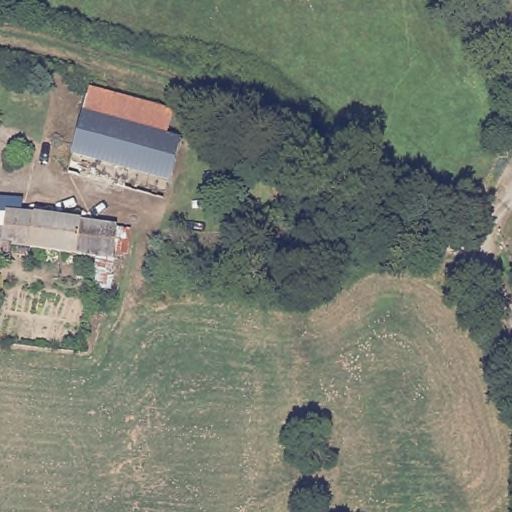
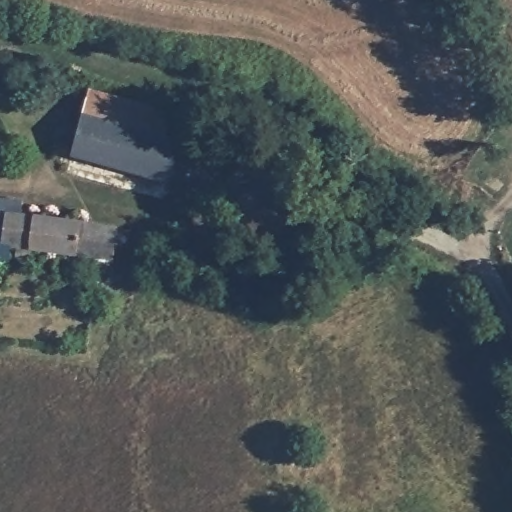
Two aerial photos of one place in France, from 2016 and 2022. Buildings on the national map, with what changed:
unchanged [(177,110),(174,119),(191,124),(190,135),(184,140),(168,198),(72,171),(93,88),(177,110)]
unchanged [(120,224),(120,228),(133,230),(130,253),(120,252),(112,287),(96,284),(99,255),(16,245),(15,259),(0,258),(0,198),(25,200),(25,211),(120,224)]

